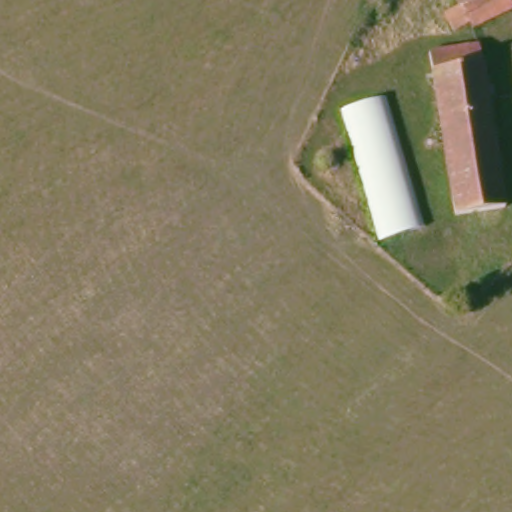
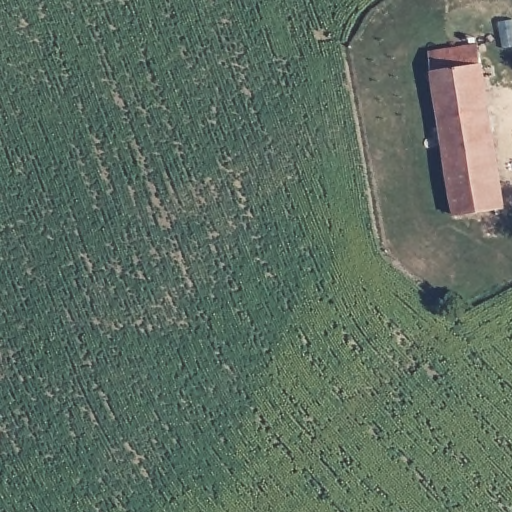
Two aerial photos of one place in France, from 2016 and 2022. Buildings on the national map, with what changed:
unchanged [(512,12),(447,36),(438,15),(451,9),(447,0),(512,0),(512,12)]
unchanged [(480,43),(482,72),(505,206),(453,215),(428,51),(480,43)]
demolished [(421,228),(378,242),(337,110),(381,92),(421,228)]

